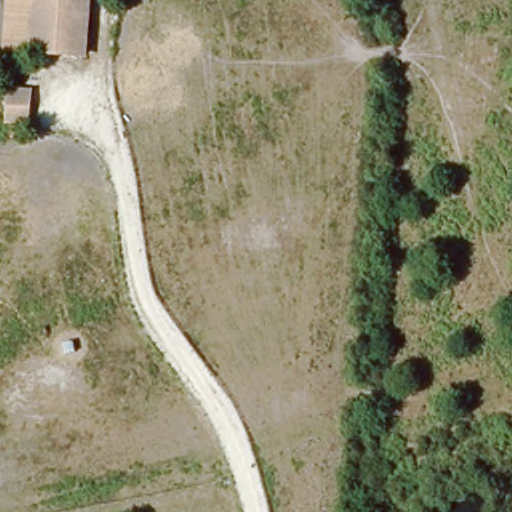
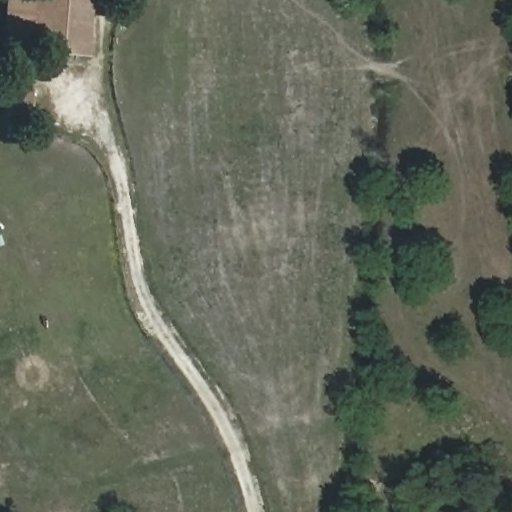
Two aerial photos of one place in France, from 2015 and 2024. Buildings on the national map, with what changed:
unchanged [(30,55),(1,52),(7,0),(34,0),(30,55)]
unchanged [(87,59),(30,55),(34,0),(93,0),(87,59)]
unchanged [(31,90),(28,126),(4,124),(8,89),(31,90)]

